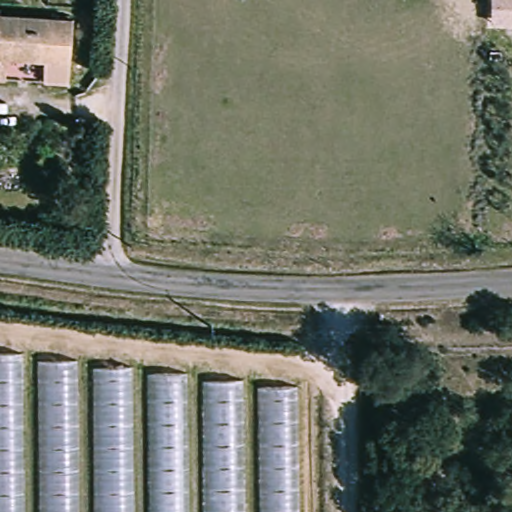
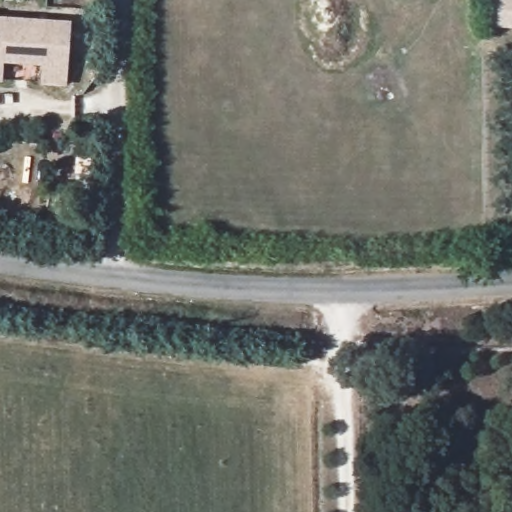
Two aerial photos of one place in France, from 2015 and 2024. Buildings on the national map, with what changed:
unchanged [(512,27),(492,26),(491,0),(512,0),(512,27)]
unchanged [(66,21),(62,85),(38,86),(35,67),(0,64),(0,17),(66,21)]
demolished [(303,512),(0,512),(0,357),(301,389),(303,512)]

